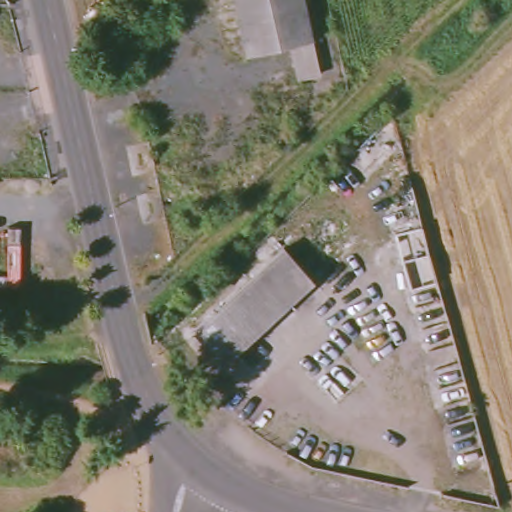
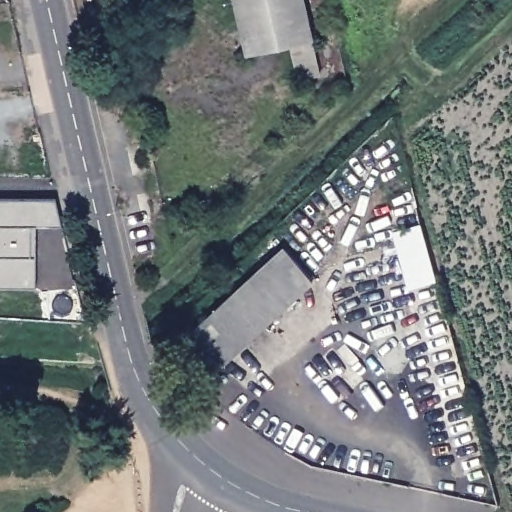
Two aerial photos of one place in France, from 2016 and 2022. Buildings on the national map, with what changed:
unchanged [(254,57),(240,0),(305,0),(323,76),(301,80),(293,47),(254,57)]
new [(36,224),(37,266),(35,266),(35,287),(0,287),(0,199),(56,200),(63,226),(36,224)]
unchanged [(192,331),(280,249),(309,278),(218,361),(192,331)]

